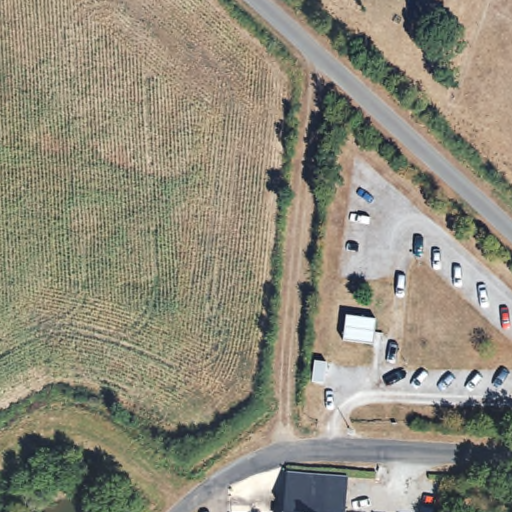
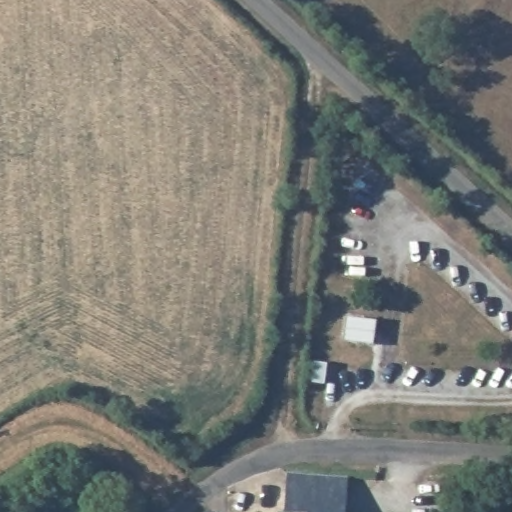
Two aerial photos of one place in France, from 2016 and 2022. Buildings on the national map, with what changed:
unchanged [(286,473),(345,478),(342,512),(282,512),(286,473)]

